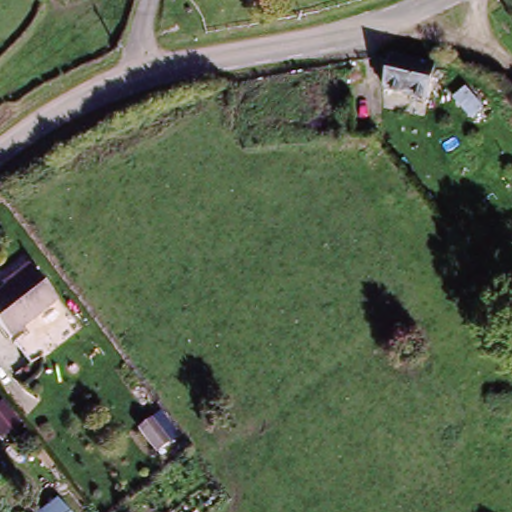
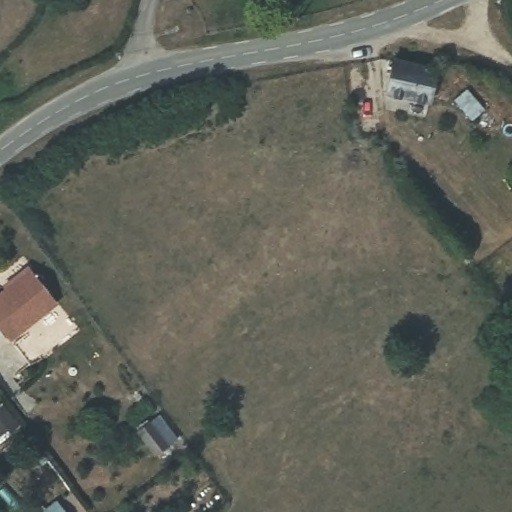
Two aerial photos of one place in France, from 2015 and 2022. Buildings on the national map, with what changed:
unchanged [(384,60),(432,81),(422,104),(373,82),(384,60)]
unchanged [(0,290),(24,272),(47,302),(1,337),(0,336),(0,290)]
unchanged [(156,416),(173,440),(161,448),(144,424),(156,416)]
unchanged [(37,512),(55,499),(67,512),(37,512)]

